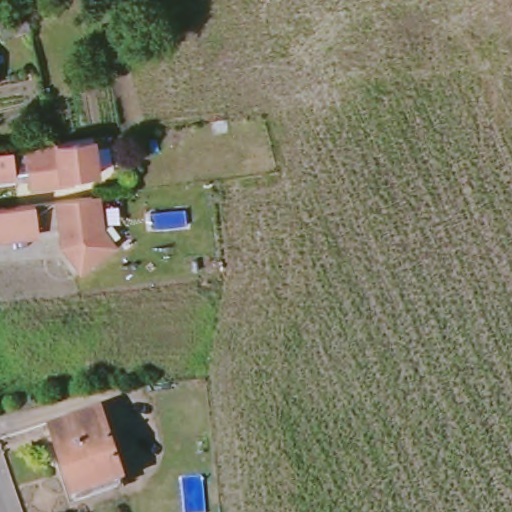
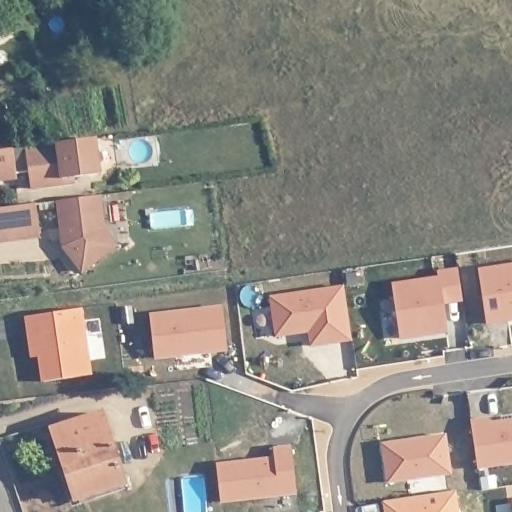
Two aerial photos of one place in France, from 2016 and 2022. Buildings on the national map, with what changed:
unchanged [(27,15),(30,26),(3,35),(0,25),(0,24),(27,15)]
unchanged [(58,184),(30,187),(25,147),(59,142),(75,140),(89,139),(94,175),(69,178),(70,182),(58,184)]
unchanged [(13,149),(17,177),(0,179),(0,151),(13,149)]
unchanged [(99,200),(104,235),(110,244),(115,252),(81,276),(63,251),(62,250),(57,205),(99,200)]
unchanged [(37,234),(25,235),(27,242),(0,246),(0,213),(35,209),(37,234)]
new [(512,313),(507,313),(508,318),(487,321),(479,266),(512,262),(512,313)]
new [(439,275),(438,270),(459,267),(463,298),(444,301),(448,329),(400,335),(393,282),(439,275)]
new [(344,283),(352,337),(313,342),(310,325),(305,325),(301,329),(276,332),(271,293),(344,283)]
new [(223,303),(227,345),(155,353),(151,310),(223,303)]
new [(27,333),(25,315),(78,306),(88,373),(42,380),(38,355),(30,356),(27,333)]
unchanged [(97,412),(121,481),(70,498),(47,429),(97,412)]
new [(490,420),(512,417),(512,462),(477,466),(471,418),(489,416),(490,420)]
new [(444,433),(449,471),(388,480),(382,441),(444,433)]
new [(253,457),(253,459),(274,457),(273,445),(290,443),(295,490),(220,497),(216,460),(253,457)]
new [(453,490),(456,512),(385,512),(383,499),(453,490)]

